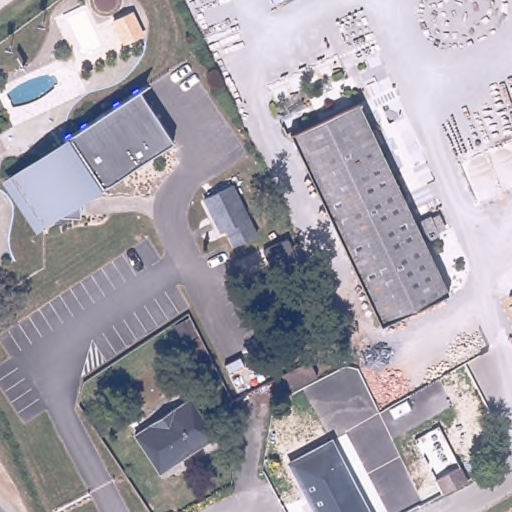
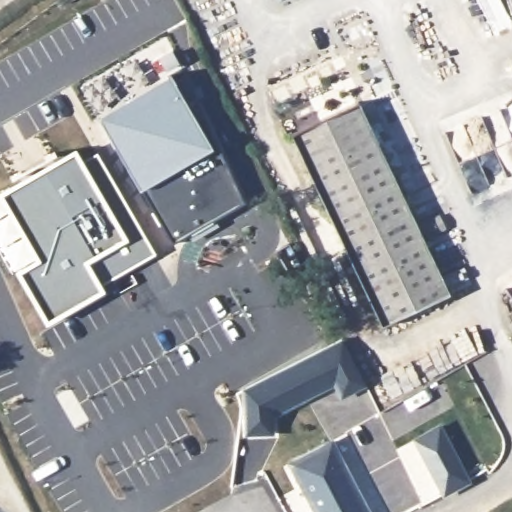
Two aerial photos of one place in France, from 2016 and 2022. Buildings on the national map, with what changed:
demolished [(145,35),(127,42),(117,21),(135,13),(145,35)]
new [(171,245),(139,189),(96,116),(170,75),(174,81),(184,75),(245,202),(171,245)]
demolished [(137,95),(170,146),(80,205),(80,222),(55,221),(39,232),(5,180),(137,95)]
unchanged [(362,105),(451,292),(436,299),(383,325),(293,137),(362,105)]
new [(100,286),(104,291),(46,324),(15,270),(35,258),(0,198),(0,191),(75,149),(81,161),(96,152),(155,254),(100,286)]
demolished [(204,200),(232,186),(256,234),(233,245),(230,241),(225,230),(217,215),(212,218),(204,200)]
demolished [(287,235),(298,261),(275,272),(263,247),(287,235)]
demolished [(175,325),(189,317),(196,333),(184,340),(177,329),(175,325)]
new [(340,400),(332,387),(273,417),(275,433),(243,435),(242,405),(239,392),(342,340),(365,385),(340,400)]
demolished [(287,378),(285,373),(312,359),(321,377),(293,391),(287,378)]
demolished [(182,403),(188,400),(213,437),(160,474),(134,435),(182,403)]
new [(444,493),(436,480),(415,439),(438,426),(460,467),(467,480),(444,493)]
unchanged [(368,512),(314,512),(287,461),(330,440),(368,512)]
demolished [(460,467),(467,480),(444,493),(436,480),(460,467)]

